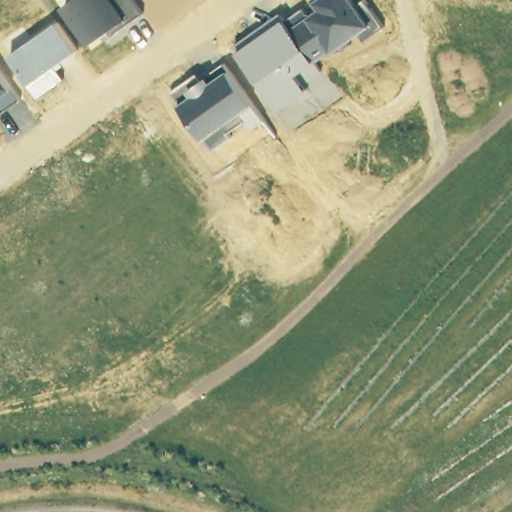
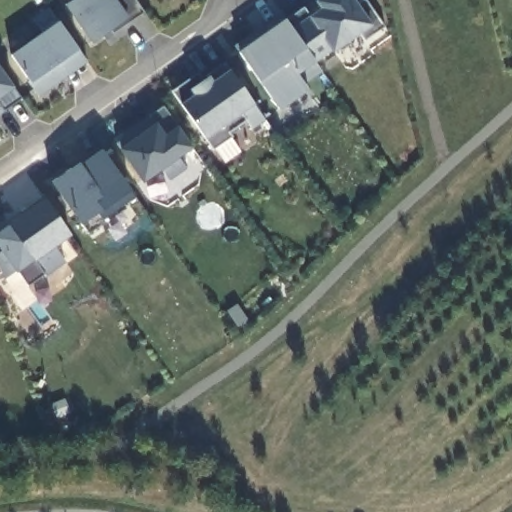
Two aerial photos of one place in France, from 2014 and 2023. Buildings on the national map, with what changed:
unchanged [(76,0),(131,0),(143,16),(112,36),(108,32),(92,44),(66,7),(76,0)]
unchanged [(278,15),(283,21),(301,9),(306,16),(317,9),(313,3),(317,0),(351,0),(356,7),(362,0),(383,29),(362,45),(356,37),(332,54),(329,50),(314,63),(321,72),(303,84),(307,91),(277,110),(233,47),(278,15)]
unchanged [(55,23),(77,52),(53,67),(62,80),(38,98),(26,84),(29,83),(9,56),(55,23)]
unchanged [(197,73),(201,79),(221,64),(226,72),(252,107),(262,121),(249,130),(244,122),(225,134),(228,139),(211,151),(172,93),(197,73)]
unchanged [(20,101),(0,116),(0,72),(12,91),(20,101)]
new [(154,126),(148,118),(164,108),(177,128),(193,149),(180,159),(188,170),(171,181),(164,171),(142,184),(120,151),(154,126)]
new [(71,171),(78,166),(101,150),(134,197),(102,220),(104,223),(87,234),(51,182),(70,169),(71,171)]
new [(55,247),(67,262),(44,277),(29,288),(15,272),(6,279),(0,270),(0,254),(0,253),(0,231),(11,223),(44,199),(71,236),(55,247)]

